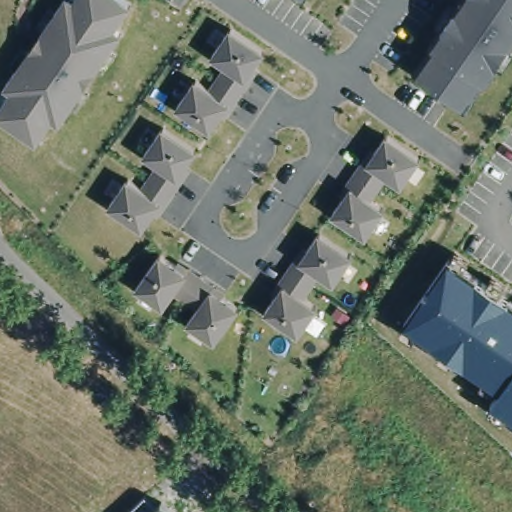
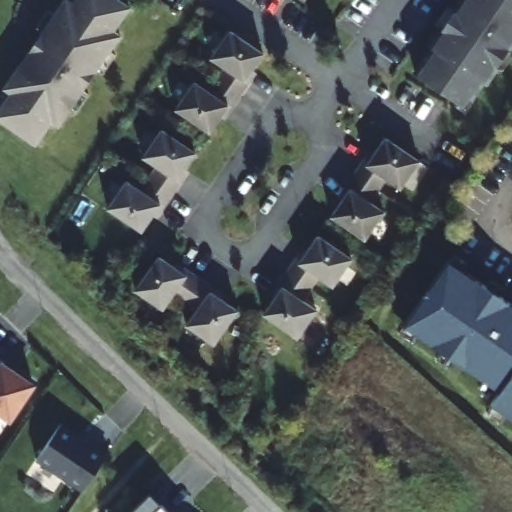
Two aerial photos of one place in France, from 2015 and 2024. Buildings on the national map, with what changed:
unchanged [(115,32),(122,37),(60,127),(52,122),(36,145),(0,121),(0,111),(11,94),(5,89),(66,0),(69,0),(74,3),(76,0),(119,0),(131,8),(115,32)]
unchanged [(485,83),(482,81),(471,98),(465,94),(458,103),(415,74),(433,48),(430,46),(462,0),(512,0),(512,44),(485,83)]
unchanged [(196,83),(210,92),(226,69),(212,59),(231,32),(265,55),(246,82),(250,84),(233,110),(229,107),(210,134),(177,110),(196,83)]
unchanged [(127,182),(141,191),(157,167),(144,158),(163,130),(196,154),(178,180),(182,183),(165,209),(160,206),(142,232),(108,209),(127,182)]
unchanged [(401,188),(387,179),(370,203),(385,212),(365,240),(332,217),(350,190),(346,187),(363,161),(367,164),(386,138),(420,161),(401,188)]
unchanged [(333,286),(320,277),(303,301),(317,310),(298,338),(265,315),(282,288),(278,285),(296,260),(300,262),(318,236),(352,259),(333,286)]
unchanged [(188,325),(197,311),(173,295),(164,309),(136,290),(160,256),(186,275),(190,271),(215,288),(212,292),(238,310),(215,344),(188,325)]
unchanged [(485,403),(495,388),(402,325),(445,260),(512,304),(512,421),(485,403)]
new [(36,382),(11,421),(0,414),(0,358),(2,359),(36,382)]
new [(61,423),(77,434),(78,438),(84,443),(88,437),(109,452),(83,490),(37,458),(61,423)]
unchanged [(157,509),(161,505),(168,512),(130,512),(145,498),(157,509)]

